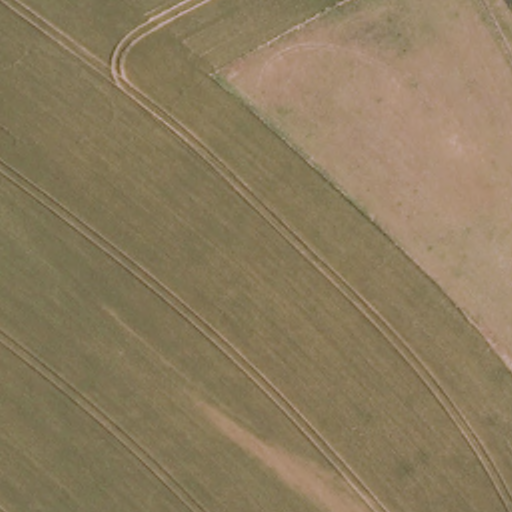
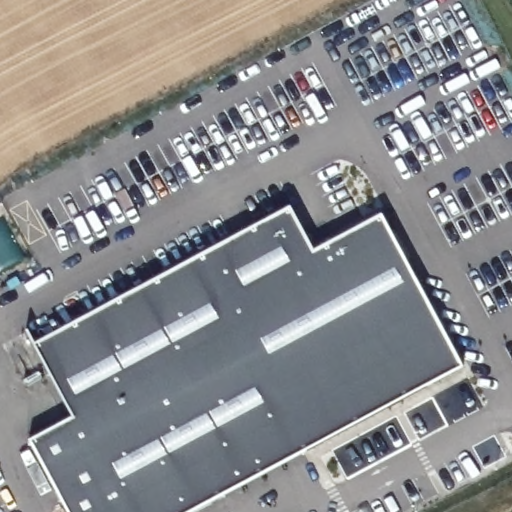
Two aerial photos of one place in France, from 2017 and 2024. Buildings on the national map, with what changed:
new [(296,214),(323,256),(391,222),(471,370),(206,512),(73,512),(38,444),(79,420),(43,350),(296,214)]

